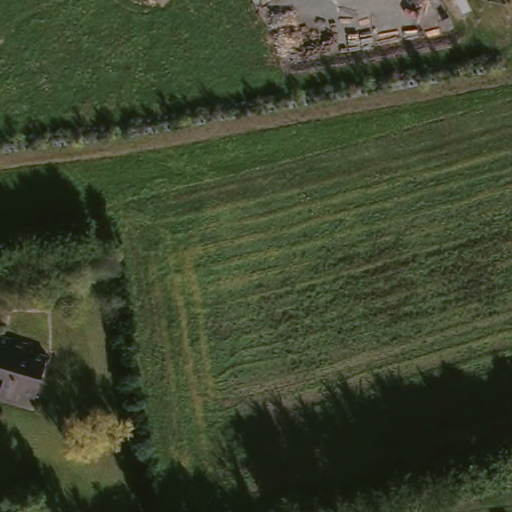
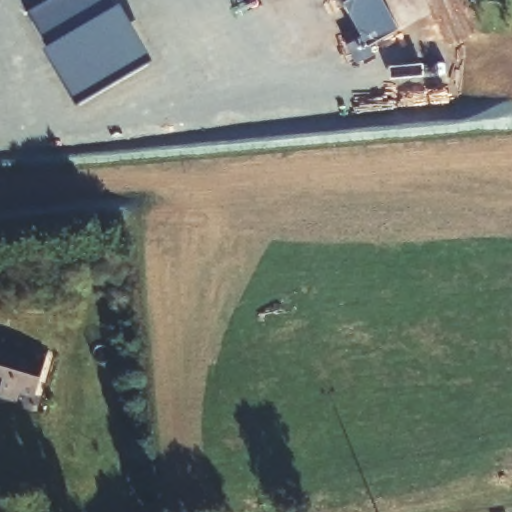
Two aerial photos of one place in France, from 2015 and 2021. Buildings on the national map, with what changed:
new [(113,0),(115,3),(46,43),(28,13),(51,0),(113,0)]
new [(366,48),(343,4),(349,0),(381,0),(398,31),(366,48)]
new [(115,3),(144,54),(75,93),(46,43),(115,3)]
unchanged [(32,356),(46,360),(36,398),(20,394),(17,402),(0,397),(0,395),(1,391),(0,391),(0,339),(34,348),(32,356)]

